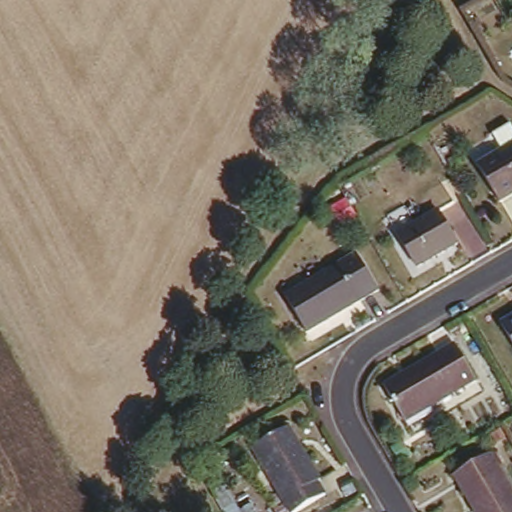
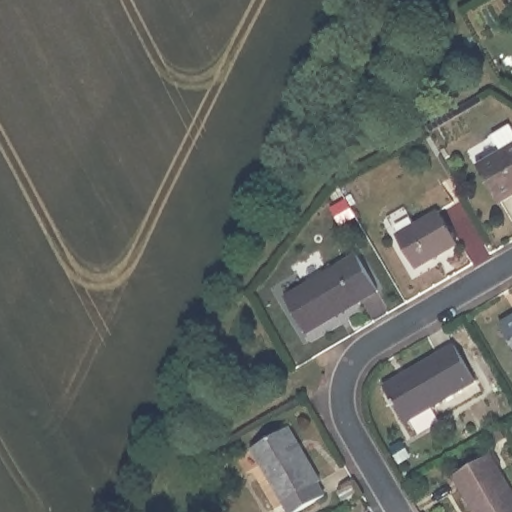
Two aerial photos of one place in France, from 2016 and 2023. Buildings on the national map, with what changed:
unchanged [(476,161),(512,140),(512,188),(496,197),(476,161)]
unchanged [(395,231),(434,209),(452,244),(413,265),(395,231)]
unchanged [(282,290),(353,250),(374,287),(302,327),(282,290)]
unchanged [(498,317),(512,309),(512,341),(498,317)]
unchanged [(381,379),(450,340),(471,375),(403,416),(381,379)]
unchanged [(320,492),(287,511),(251,447),(288,425),(320,480),(314,483),(320,492)]
unchanged [(454,475),(491,453),(512,490),(512,512),(473,512),(454,475)]

